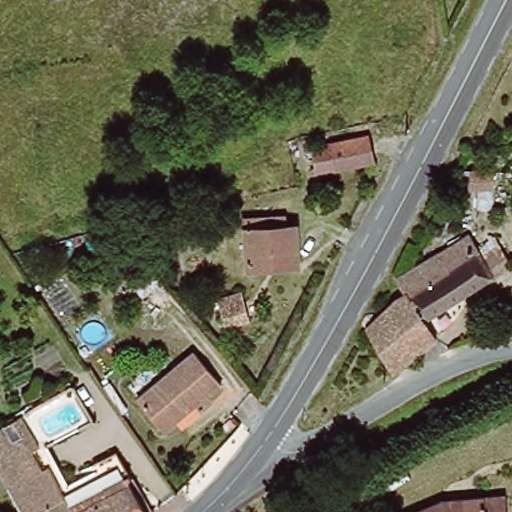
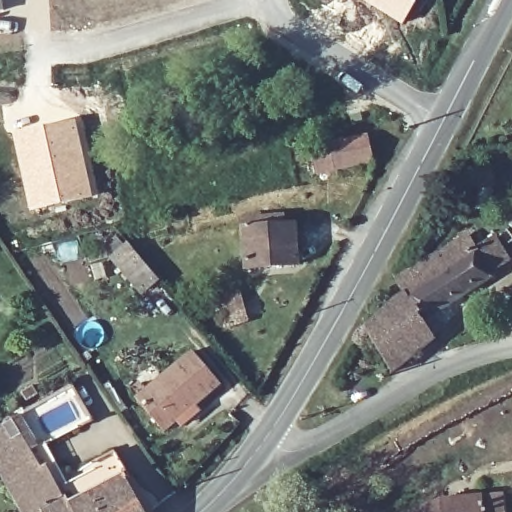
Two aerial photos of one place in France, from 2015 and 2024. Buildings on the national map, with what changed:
new [(4,10),(0,10),(0,0),(2,0),(4,10)]
new [(417,2),(403,26),(359,0),(415,0),(417,2)]
new [(76,120),(94,197),(30,213),(12,134),(76,120)]
unchanged [(360,138),(364,163),(310,175),(306,149),(360,138)]
unchanged [(245,233),(291,232),(292,273),(247,275),(245,233)]
unchanged [(195,240),(205,238),(209,251),(165,264),(158,244),(192,233),(195,240)]
unchanged [(361,330),(386,307),(400,297),(396,288),(393,283),(403,277),(462,240),(475,261),(492,250),(505,269),(418,324),(430,342),(387,378),(367,343),(361,330)]
unchanged [(138,288),(109,251),(129,245),(155,277),(138,288)]
unchanged [(250,321),(230,327),(221,300),(242,294),(250,321)]
unchanged [(183,430),(175,422),(162,433),(135,404),(188,353),(216,383),(195,404),(201,412),(183,430)]
unchanged [(95,466),(115,454),(130,480),(126,482),(143,512),(42,512),(20,512),(11,497),(0,503),(0,424),(2,423),(11,439),(20,433),(11,417),(17,414),(34,441),(40,452),(46,448),(67,485),(96,468),(95,466)]
unchanged [(505,495),(506,512),(417,512),(442,501),(505,495)]

